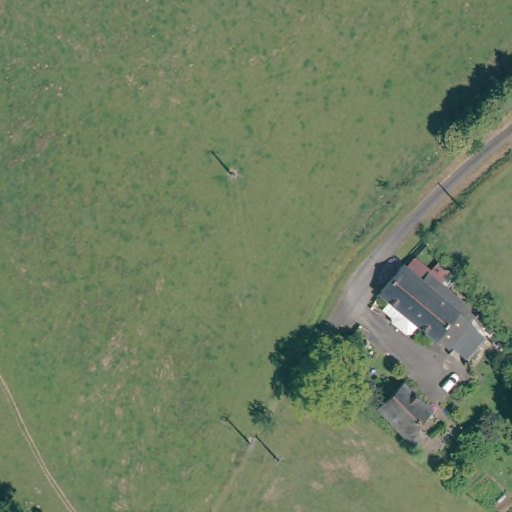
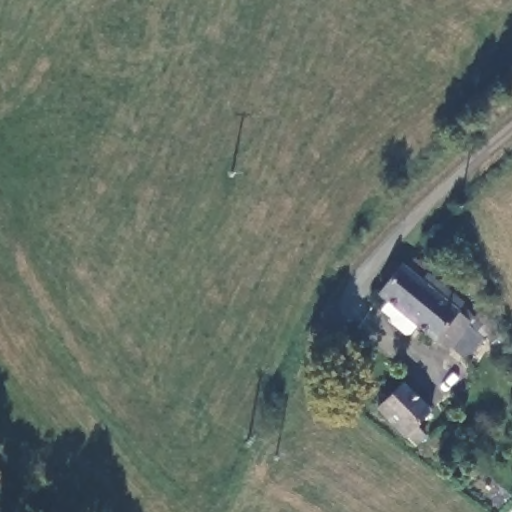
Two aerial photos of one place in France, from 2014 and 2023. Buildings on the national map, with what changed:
unchanged [(395,313),(404,302),(392,293),(413,267),(470,312),(449,338),(434,327),(425,337),(395,313)]
unchanged [(415,383),(440,412),(427,424),(434,433),(419,446),(386,408),(415,383)]

